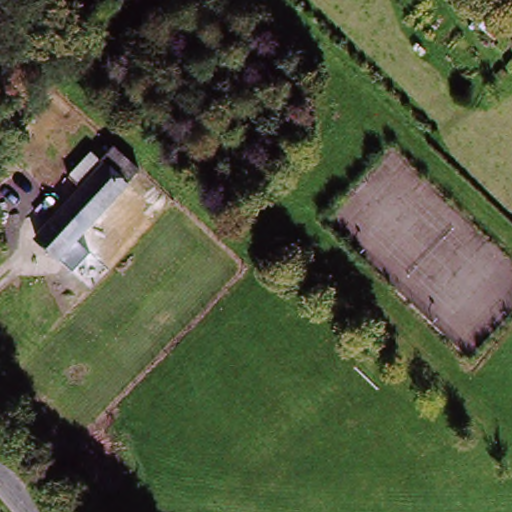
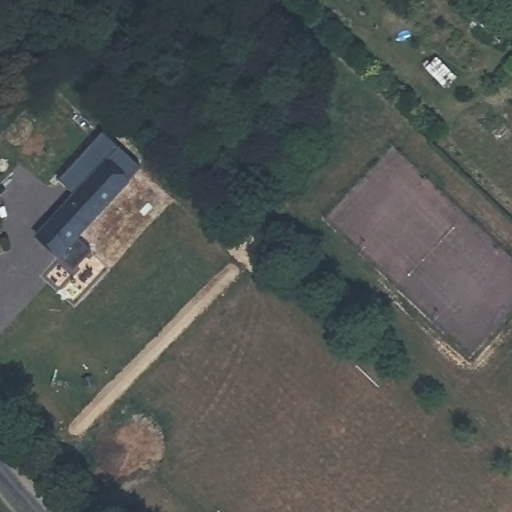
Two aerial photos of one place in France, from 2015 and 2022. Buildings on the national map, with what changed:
unchanged [(76,242),(91,255),(75,273),(37,240),(85,189),(70,176),(91,152),(102,162),(117,147),(130,160),(141,170),(76,242)]

